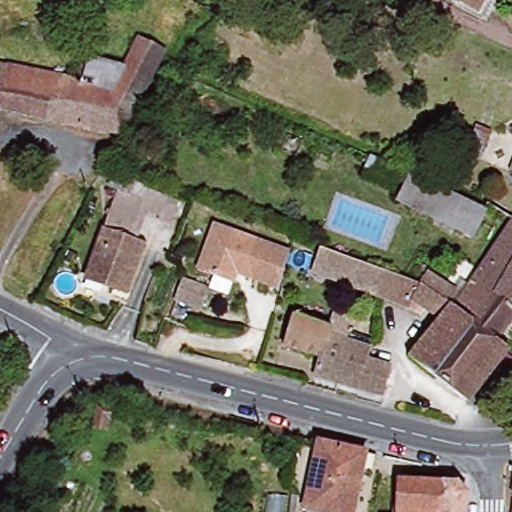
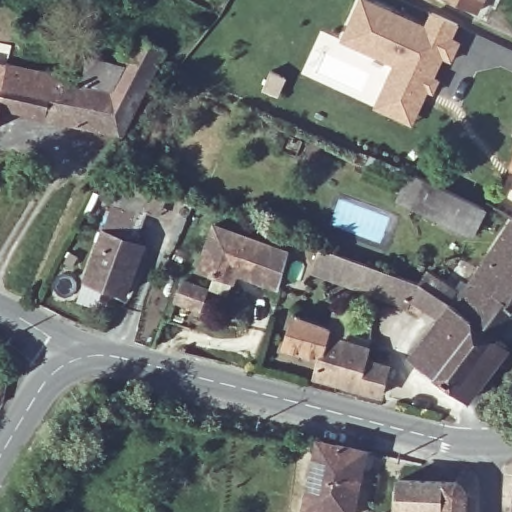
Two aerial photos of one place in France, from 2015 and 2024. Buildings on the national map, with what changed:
new [(360,48),(343,40),(349,28),(362,0),(367,0),(427,27),(433,12),(459,24),(452,38),(460,42),(452,60),(443,57),(420,109),(413,124),(377,108),(383,93),(396,64),(360,48)]
unchanged [(478,9),(460,0),(483,0),(478,9)]
unchanged [(127,54),(130,50),(120,45),(130,28),(147,36),(155,21),(171,30),(153,65),(127,54)]
unchanged [(4,63),(112,86),(127,54),(153,65),(158,68),(153,77),(148,76),(141,92),(153,95),(124,133),(0,107),(0,84),(4,63)]
unchanged [(4,63),(0,84),(0,63),(4,63)]
unchanged [(512,158),(512,170),(508,168),(512,158)]
unchanged [(365,170),(369,161),(400,174),(397,183),(365,170)]
unchanged [(169,197),(165,212),(146,206),(140,227),(145,229),(124,296),(79,281),(110,194),(97,189),(102,175),(125,183),(169,197)]
unchanged [(411,177),(485,211),(472,238),(412,211),(413,208),(410,207),(400,202),(403,194),(411,177)]
unchanged [(235,277),(200,265),(215,220),(293,246),(281,283),(249,272),(238,268),(235,277)]
unchanged [(420,281),(429,272),(453,291),(461,282),(467,285),(510,220),(512,222),(512,321),(496,340),(420,281)]
unchanged [(311,270),(320,246),(384,268),(376,291),(376,295),(311,270)]
unchanged [(466,402),(448,387),(446,389),(408,358),(438,319),(413,300),(408,307),(376,295),(376,291),(384,268),(420,281),(496,340),(507,349),(466,402)]
unchanged [(180,299),(189,277),(210,285),(203,306),(180,299)]
unchanged [(387,369),(378,398),(315,380),(318,366),(283,356),(291,320),(329,330),(346,335),(367,341),(370,342),(364,361),(387,369)]
unchanged [(326,512),(303,507),(315,439),(362,451),(351,512),(326,512)]
unchanged [(453,480),(464,492),(463,512),(398,512),(398,479),(453,480)]

